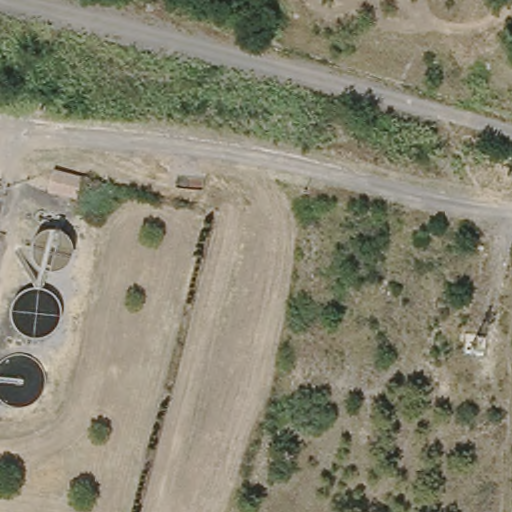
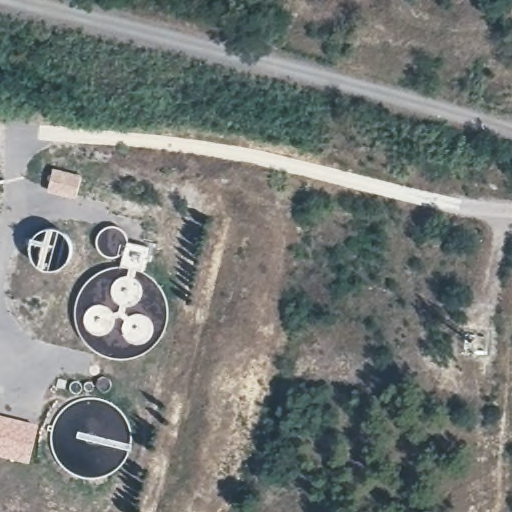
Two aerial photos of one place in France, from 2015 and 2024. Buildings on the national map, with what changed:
unchanged [(86,179),(82,198),(53,191),(58,173),(86,179)]
new [(0,458),(0,417),(38,427),(28,465),(0,458)]

